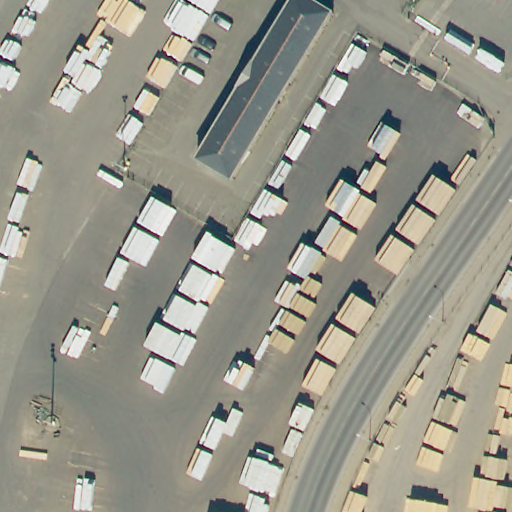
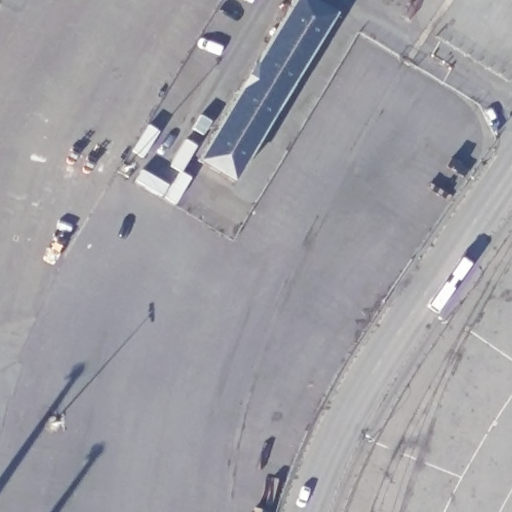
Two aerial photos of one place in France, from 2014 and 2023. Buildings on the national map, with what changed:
unchanged [(295,0),(311,0),(336,16),(232,182),(200,161),(295,0)]

